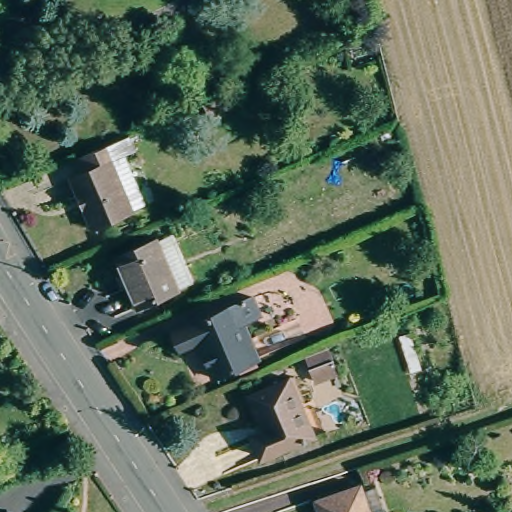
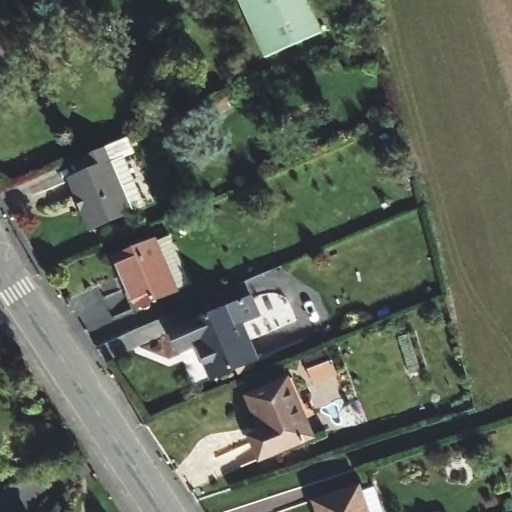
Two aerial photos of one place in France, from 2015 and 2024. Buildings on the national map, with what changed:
new [(266,57),(242,0),(309,0),(323,32),(266,57)]
unchanged [(126,130),(133,147),(125,151),(144,201),(137,203),(130,206),(111,157),(78,168),(72,151),(126,130)]
unchanged [(111,157),(130,206),(88,224),(68,172),(78,168),(111,157)]
unchanged [(138,310),(113,258),(157,241),(178,294),(138,310)]
unchanged [(203,375),(188,342),(169,349),(160,328),(225,303),(242,296),(250,315),(232,322),(246,358),(203,375)]
unchanged [(321,370),(316,358),(338,348),(344,360),(321,370)]
unchanged [(256,462),(246,435),(256,431),(245,397),(285,382),(309,442),(256,462)]
unchanged [(305,505),(347,490),(351,498),(366,494),(372,512),(307,512),(305,505)]

